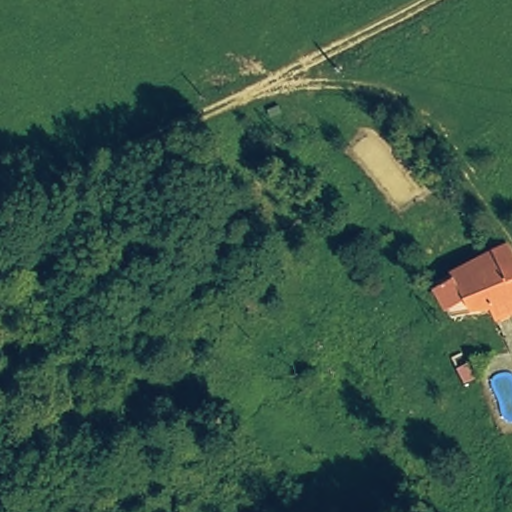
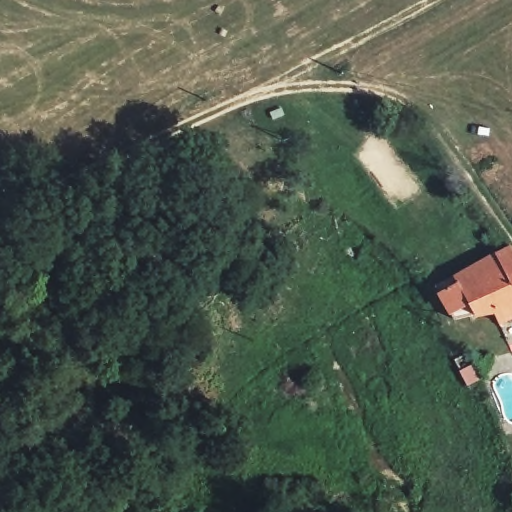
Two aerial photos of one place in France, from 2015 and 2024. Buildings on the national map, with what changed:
unchanged [(512,255),(512,305),(460,329),(441,286),(512,255)]

